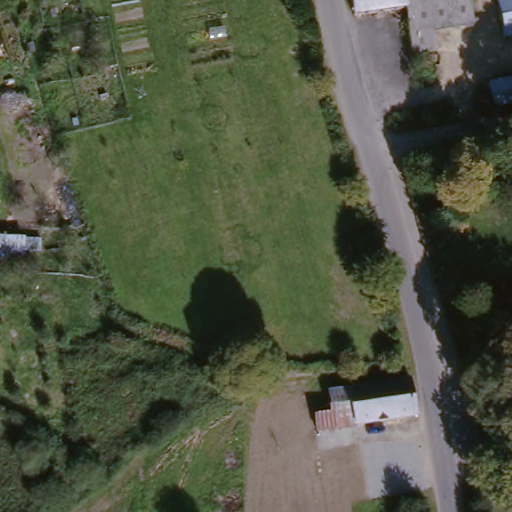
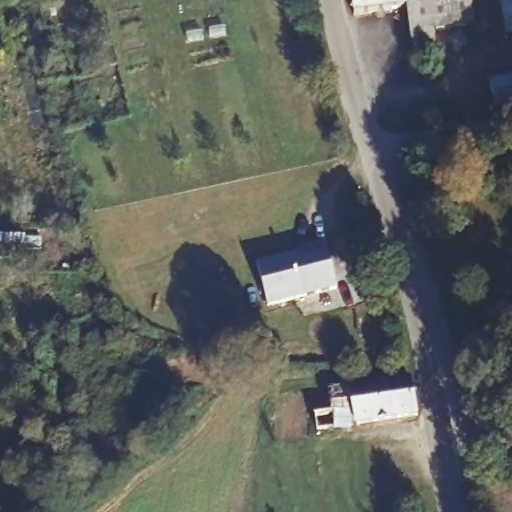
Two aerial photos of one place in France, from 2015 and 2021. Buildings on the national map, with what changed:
unchanged [(408,9),(355,16),(353,0),(407,0),(408,9)]
unchanged [(407,0),(470,0),(470,1),(408,9),(407,0)]
unchanged [(512,14),(509,0),(512,0),(512,14)]
unchanged [(473,25),(434,29),(437,52),(415,55),(411,26),(408,9),(470,1),(473,25)]
unchanged [(512,79),(512,104),(494,108),(489,84),(512,79)]
new [(338,290),(268,308),(257,263),(305,251),(305,248),(325,243),(338,290)]
unchanged [(318,430),(316,416),(332,414),(330,391),(348,389),(357,387),(360,387),(407,381),(410,380),(415,418),(353,425),(335,428),(318,430)]

